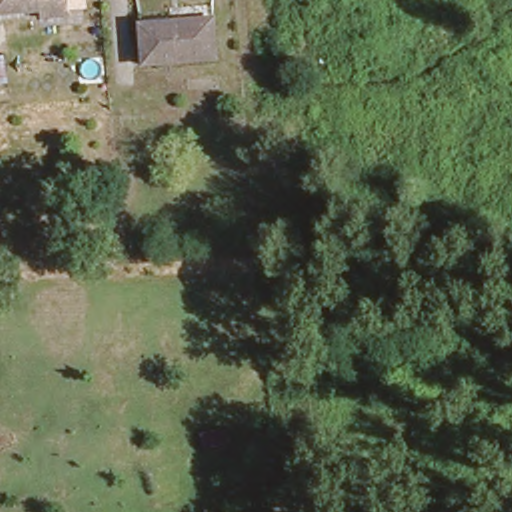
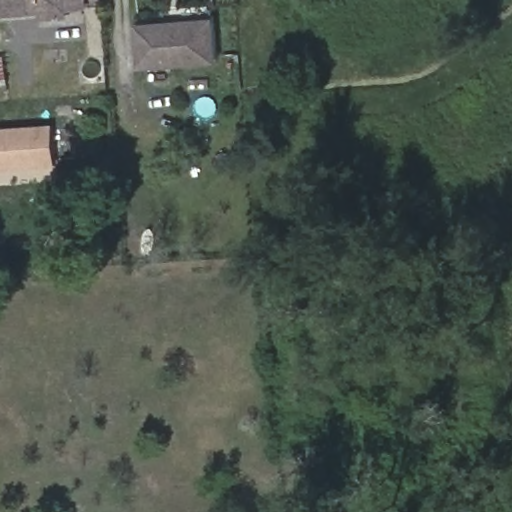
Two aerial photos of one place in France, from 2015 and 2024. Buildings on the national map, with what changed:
unchanged [(32,15),(30,5),(0,8),(0,0),(63,0),(64,11),(32,15)]
unchanged [(211,16),(215,53),(140,63),(136,24),(211,16)]
unchanged [(6,79),(0,80),(0,53),(3,53),(6,79)]
new [(60,166),(0,172),(0,134),(57,129),(60,166)]

